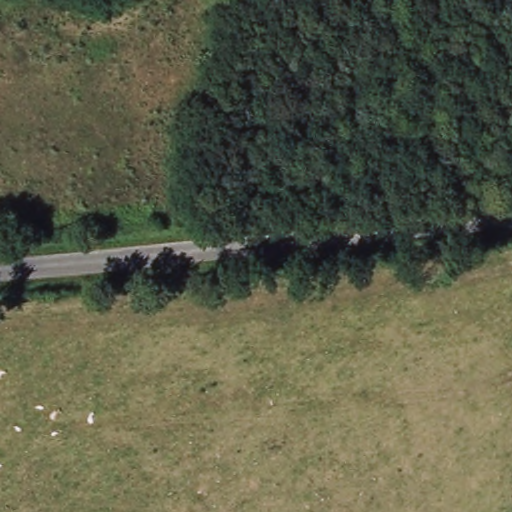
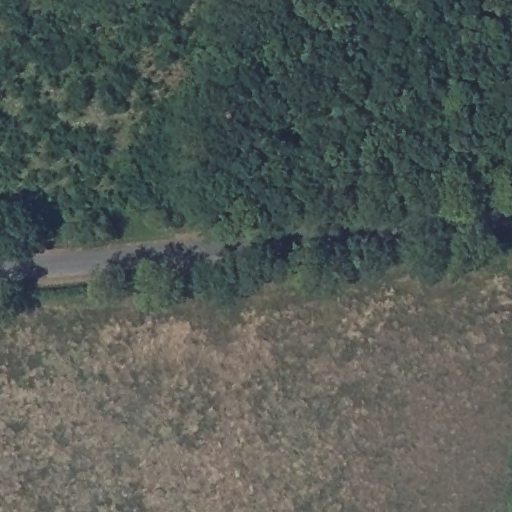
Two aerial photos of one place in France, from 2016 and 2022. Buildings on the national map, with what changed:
[]

